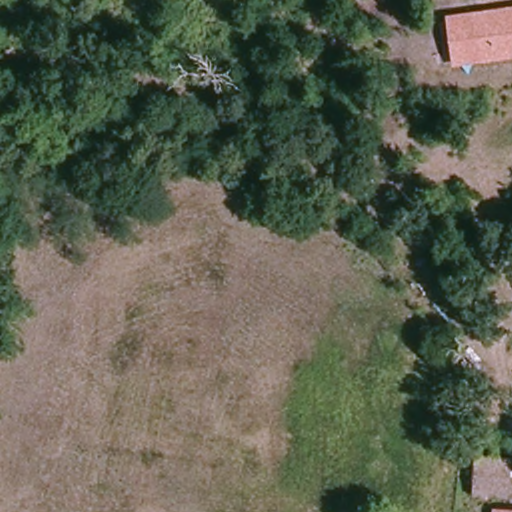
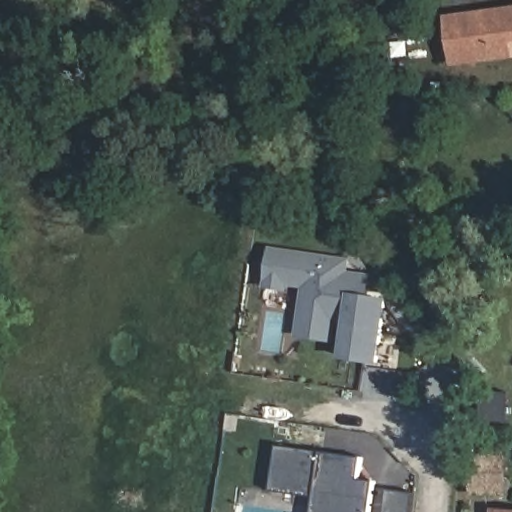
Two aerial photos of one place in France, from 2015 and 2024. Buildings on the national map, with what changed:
unchanged [(446,16),(512,8),(512,59),(452,68),(446,16)]
new [(343,261),(348,262),(347,274),(370,277),(367,299),(387,302),(378,362),(345,356),(350,321),(335,319),(332,340),(299,335),(307,285),(288,283),(287,289),(262,286),(268,250),(343,261)]
unchanged [(510,447),(505,499),(477,495),(481,444),(510,447)]
new [(270,493),(275,447),(361,457),(358,479),(375,481),(371,512),(312,512),(313,498),(270,493)]
new [(415,494),(412,512),(384,512),(386,491),(415,494)]
unchanged [(512,511),(512,512),(494,512),(495,510),(512,511)]

